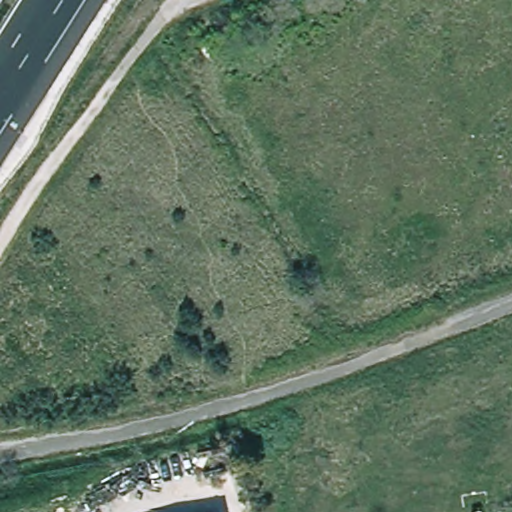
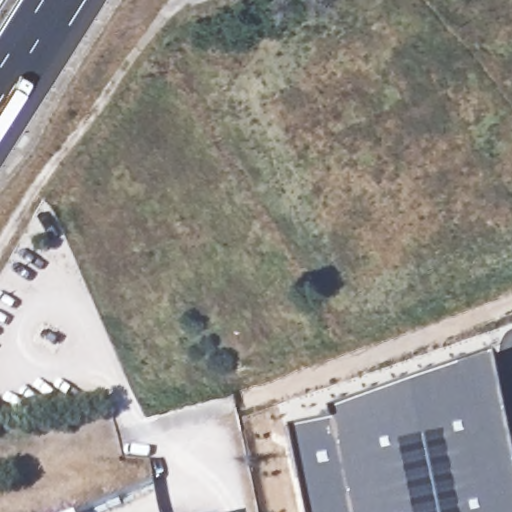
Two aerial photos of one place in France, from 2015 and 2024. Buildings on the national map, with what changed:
new [(512,421),(512,512),(313,512),(295,428),(335,420),(332,410),(498,353),(512,421)]

